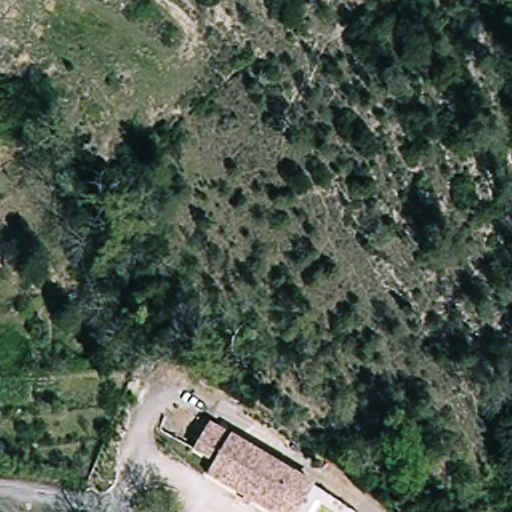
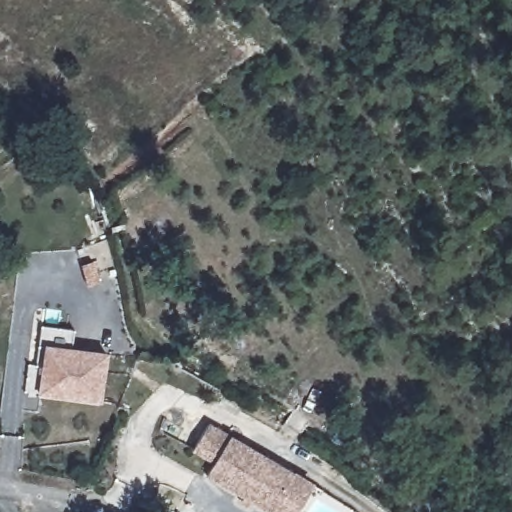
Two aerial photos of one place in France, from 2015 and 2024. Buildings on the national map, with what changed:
unchanged [(96,262),(101,282),(86,286),(82,266),(96,262)]
new [(41,363),(50,314),(83,320),(79,339),(114,345),(104,403),(44,393),(48,365),(41,363)]
unchanged [(295,512),(269,512),(206,475),(213,462),(193,450),(208,424),(294,474),(311,484),(295,512)]

